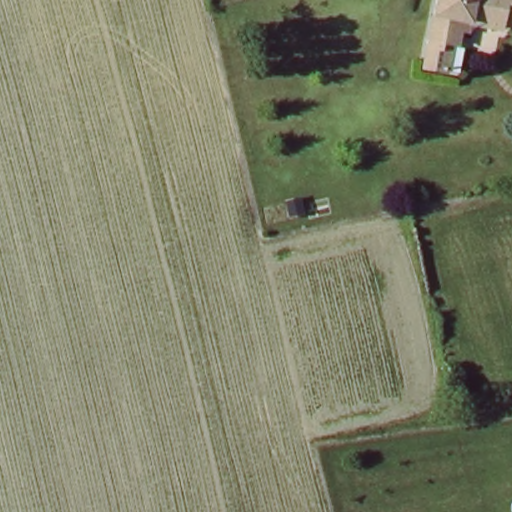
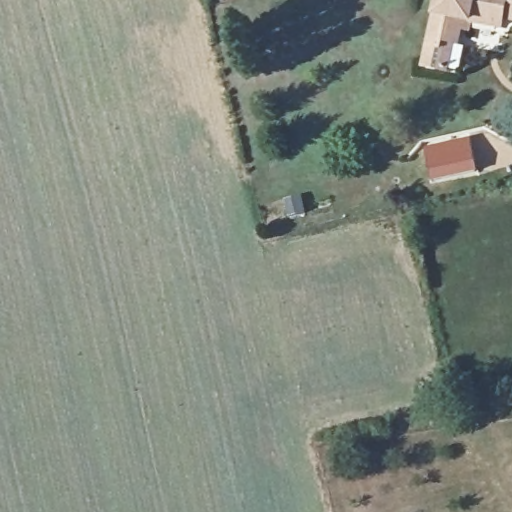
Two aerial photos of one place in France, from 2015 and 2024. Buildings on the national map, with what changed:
unchanged [(493,17),(476,14),(474,26),(471,37),(450,34),(449,35),(446,48),(443,61),(423,56),(427,34),(433,10),(435,0),(512,0),(512,21),(493,17)]
new [(433,183),(426,148),(470,138),(478,173),(433,183)]

